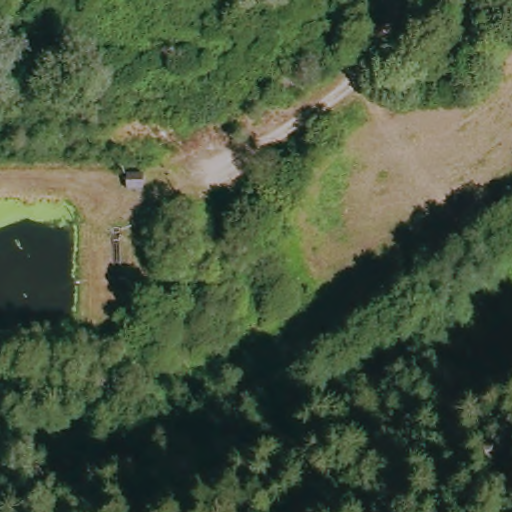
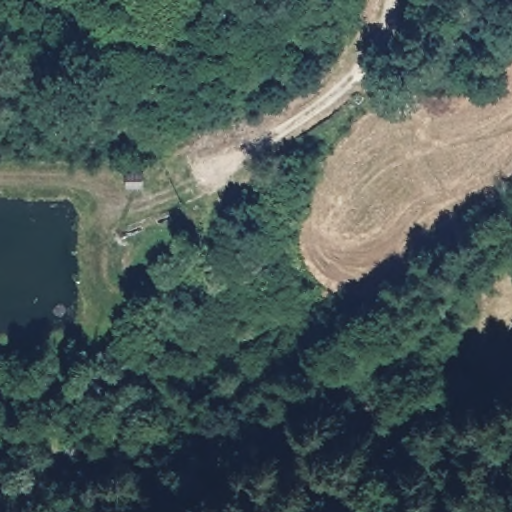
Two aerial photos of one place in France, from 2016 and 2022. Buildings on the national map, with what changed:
unchanged [(140,175),(123,175),(124,155),(140,155),(140,175)]

